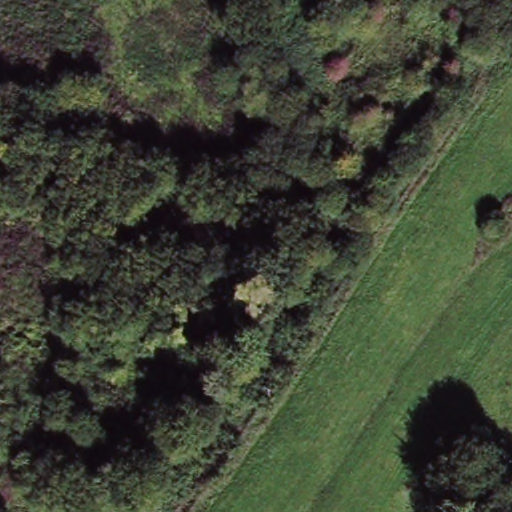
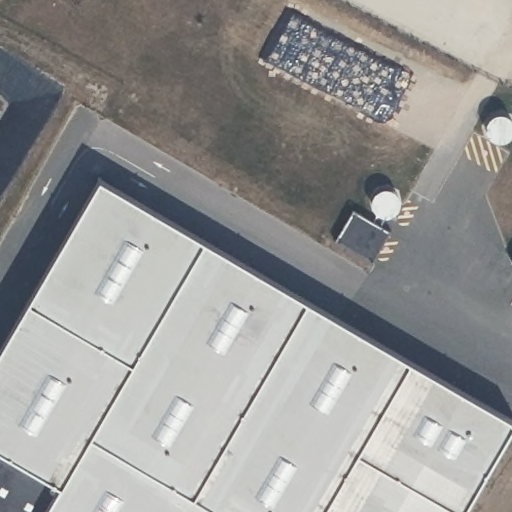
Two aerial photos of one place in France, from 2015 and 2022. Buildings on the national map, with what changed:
new [(512,423),(460,512),(0,512),(0,343),(98,174),(512,412),(512,423)]
new [(390,228),(371,259),(333,237),(352,206),(390,228)]

